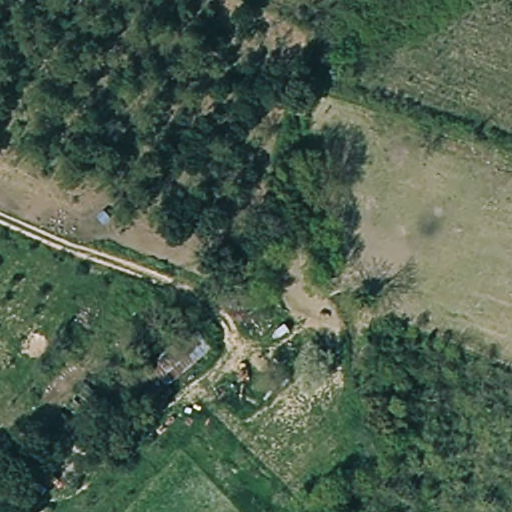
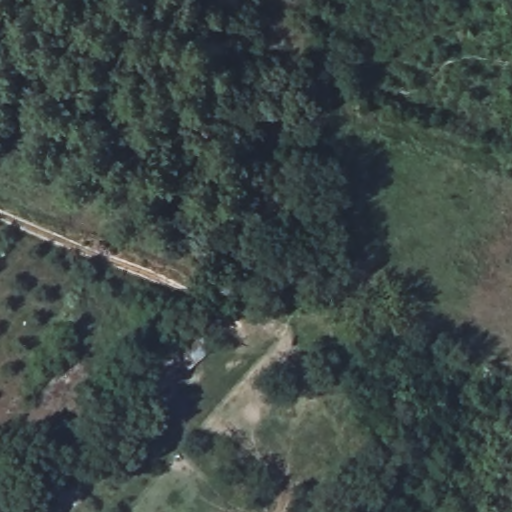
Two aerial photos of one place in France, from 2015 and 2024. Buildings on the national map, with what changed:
[]

